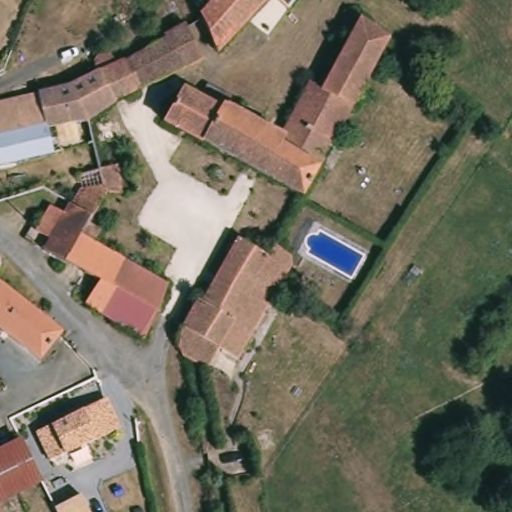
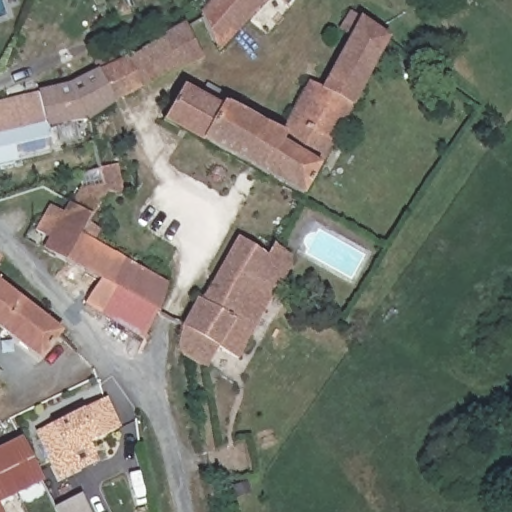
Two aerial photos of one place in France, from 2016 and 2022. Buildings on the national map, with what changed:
unchanged [(287,0),(258,34),(241,21),(214,54),(212,53),(196,18),(212,0),(287,0)]
unchanged [(312,205),(304,200),(300,204),(199,155),(219,116),(223,118),(280,146),(307,95),(317,77),(330,85),(350,55),(338,44),(351,23),(362,31),(389,53),(382,66),(338,144),(322,173),(309,192),(317,197),(312,205)]
unchanged [(120,74),(165,52),(163,46),(165,45),(175,39),(184,34),(199,71),(160,89),(134,100),(108,113),(121,139),(90,150),(0,174),(0,113),(94,85),(120,74)]
unchanged [(158,135),(177,99),(198,109),(199,106),(206,97),(208,97),(228,109),(223,118),(219,116),(199,155),(158,135)]
unchanged [(83,309),(98,286),(44,254),(49,243),(38,238),(49,211),(61,219),(67,212),(75,197),(72,188),(70,185),(70,182),(94,176),(92,161),(115,154),(120,168),(115,169),(122,202),(104,202),(89,224),(85,230),(97,237),(92,245),(109,255),(130,269),(133,270),(139,261),(162,274),(163,274),(163,289),(155,305),(153,310),(157,314),(153,321),(150,319),(140,346),(115,330),(83,309)]
unchanged [(228,379),(205,366),(180,355),(174,341),(197,295),(202,298),(246,228),(288,257),(293,269),(239,357),(233,354),(227,362),(235,367),(228,379)]
unchanged [(35,365),(0,338),(0,293),(55,339),(35,365)]
unchanged [(49,463),(36,436),(104,405),(115,432),(63,456),(49,463)]
unchanged [(23,512),(0,512),(0,454),(20,444),(40,486),(16,499),(23,512)]

